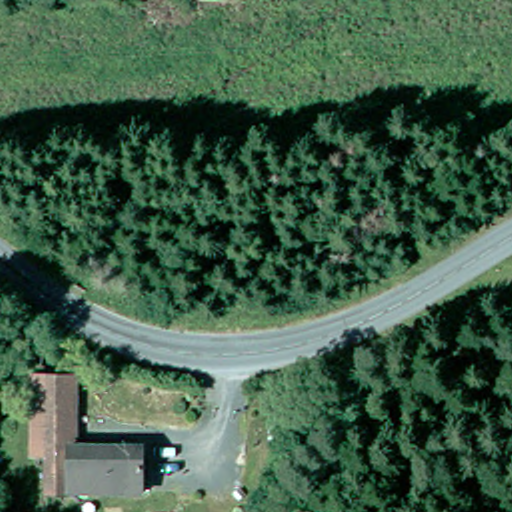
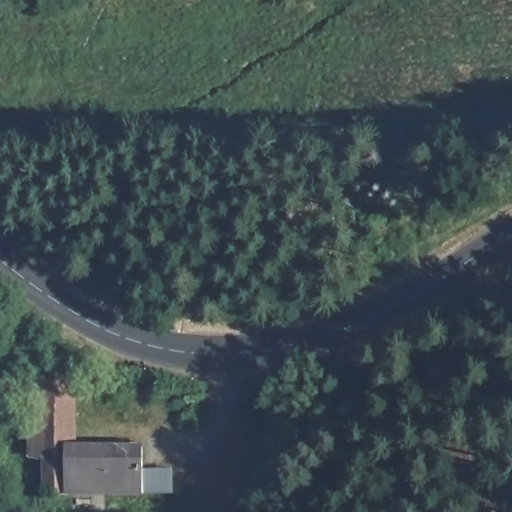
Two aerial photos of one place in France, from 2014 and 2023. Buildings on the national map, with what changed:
unchanged [(72,441),(70,488),(46,487),(46,462),(35,456),(36,423),(47,417),(48,373),(82,373),(81,441),(72,441)]
unchanged [(142,444),(141,490),(70,488),(72,441),(81,441),(142,444)]

